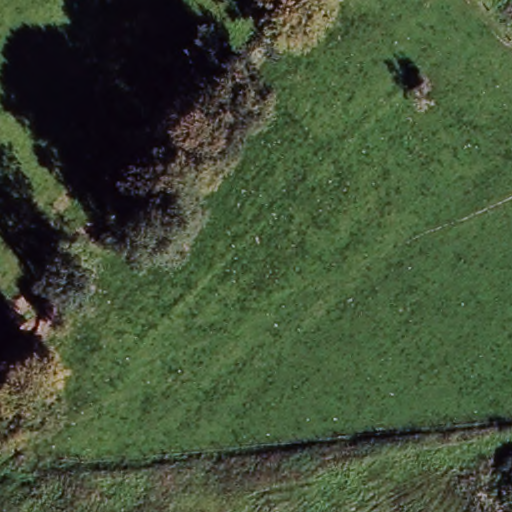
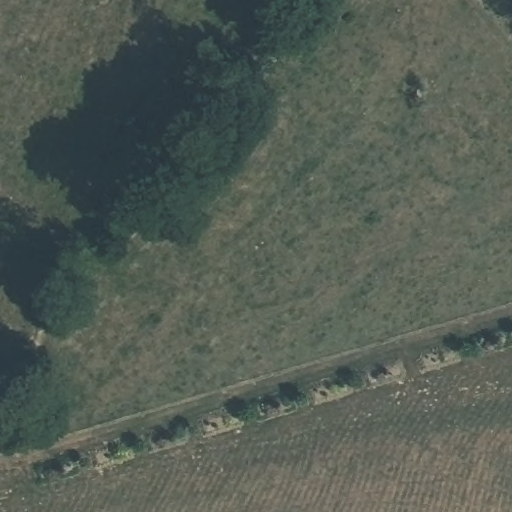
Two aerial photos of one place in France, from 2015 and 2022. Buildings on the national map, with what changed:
[]

